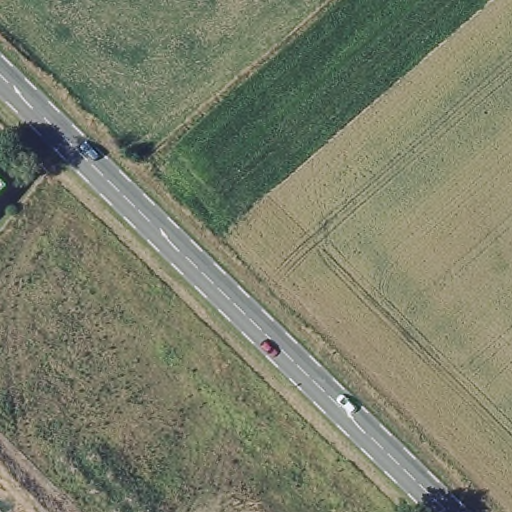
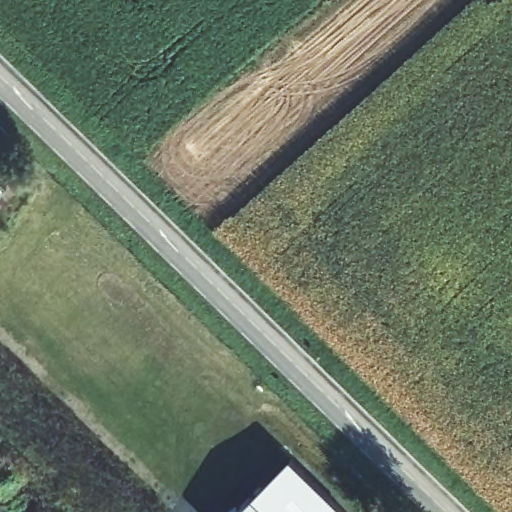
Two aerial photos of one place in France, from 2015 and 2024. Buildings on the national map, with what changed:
unchanged [(6,186),(0,191),(0,180),(6,186)]
new [(294,459),(348,512),(243,512),(294,459)]

